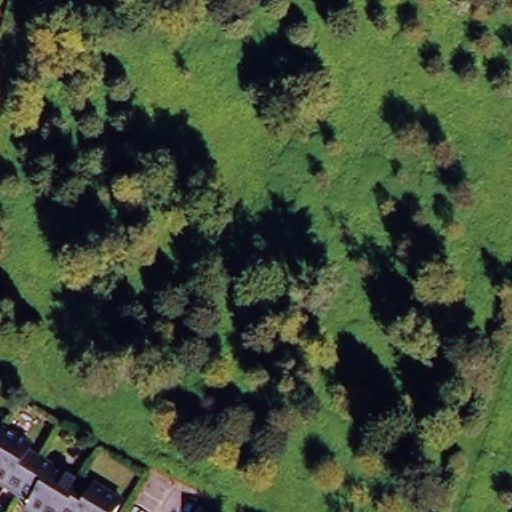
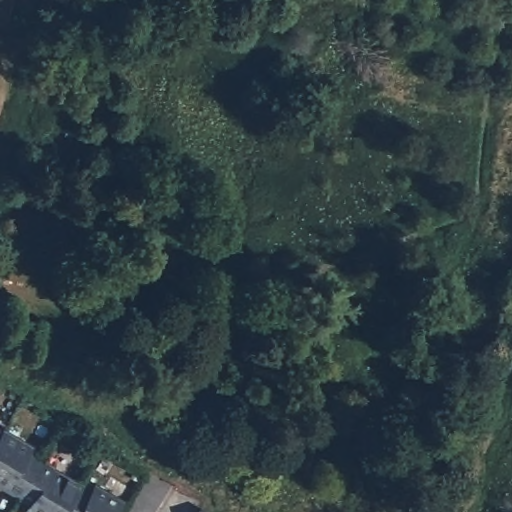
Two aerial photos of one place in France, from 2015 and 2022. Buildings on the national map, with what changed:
unchanged [(0,482),(0,440),(0,425),(7,429),(43,449),(18,493),(0,482)]
unchanged [(87,473),(66,512),(53,512),(18,493),(43,449),(87,473)]
unchanged [(125,494),(115,512),(66,512),(87,473),(125,494)]
unchanged [(223,512),(210,512),(213,507),(223,512)]

